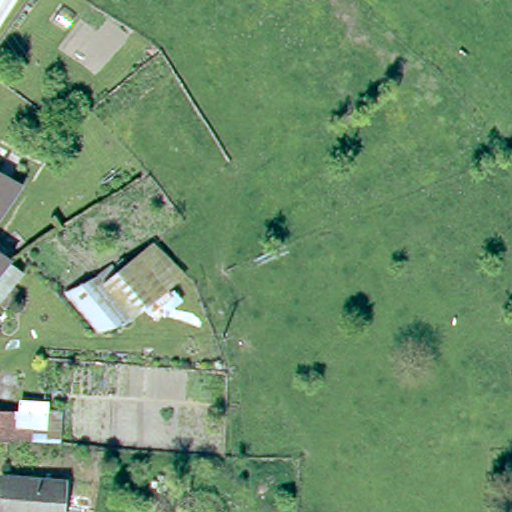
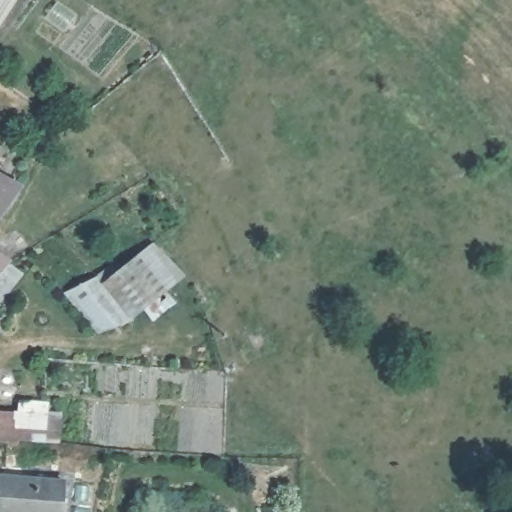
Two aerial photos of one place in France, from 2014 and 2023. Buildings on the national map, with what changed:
unchanged [(0,172),(21,184),(0,213),(0,172)]
unchanged [(67,290),(108,260),(118,265),(152,236),(184,272),(169,285),(180,299),(152,322),(143,308),(97,332),(67,290)]
unchanged [(9,257),(0,268),(0,252),(9,257)]
unchanged [(140,346),(150,346),(150,356),(140,355),(140,346)]
unchanged [(19,388),(60,393),(57,450),(0,446),(0,404),(17,405),(19,388)]
unchanged [(56,512),(9,512),(0,511),(0,471),(60,478),(56,512)]

